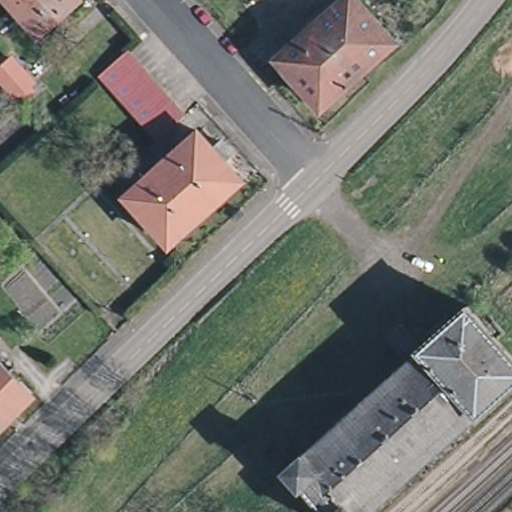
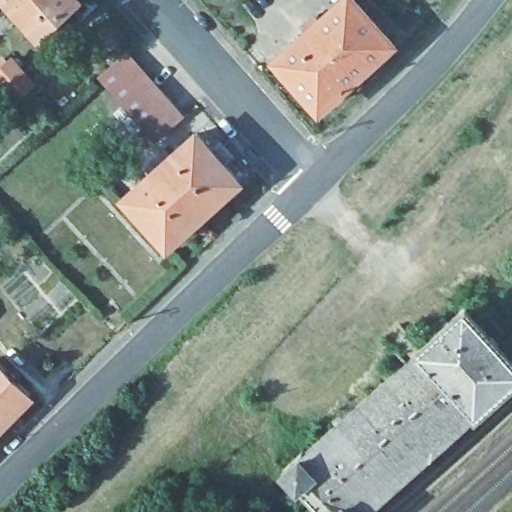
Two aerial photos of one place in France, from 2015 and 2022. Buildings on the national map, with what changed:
unchanged [(9,0),(73,0),(37,31),(9,0)]
unchanged [(319,105),(277,59),(341,0),(354,0),(391,40),(319,105)]
unchanged [(141,120),(131,110),(121,99),(111,87),(97,72),(123,50),(137,65),(147,76),(157,86),(167,98),(181,112),(155,135),(141,120)]
unchanged [(3,69),(0,65),(0,61),(4,57),(9,63),(14,58),(34,80),(29,85),(33,90),(27,95),(23,90),(18,95),(0,74),(0,71),(3,69)]
unchanged [(216,147),(225,140),(235,150),(226,158),(243,176),(171,240),(156,224),(147,231),(135,218),(144,210),(129,194),(201,130),(216,147)]
unchanged [(428,342),(423,337),(442,320),(447,326),(465,310),(512,363),(512,386),(477,418),(475,415),(367,512),(323,512),(301,488),(298,490),(282,473),(301,456),(303,459),(418,355),(416,353),(428,342)]
unchanged [(29,395),(0,423),(0,367),(29,395)]

